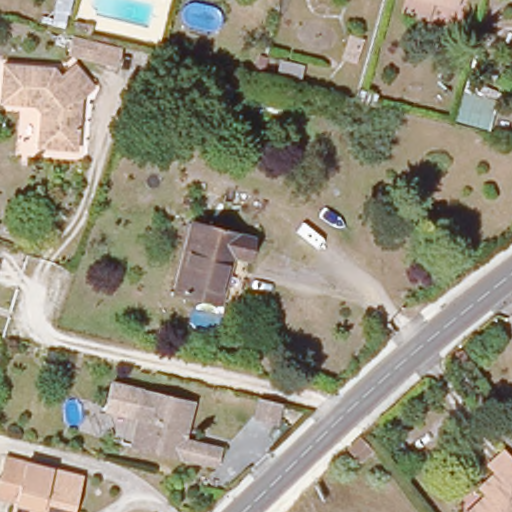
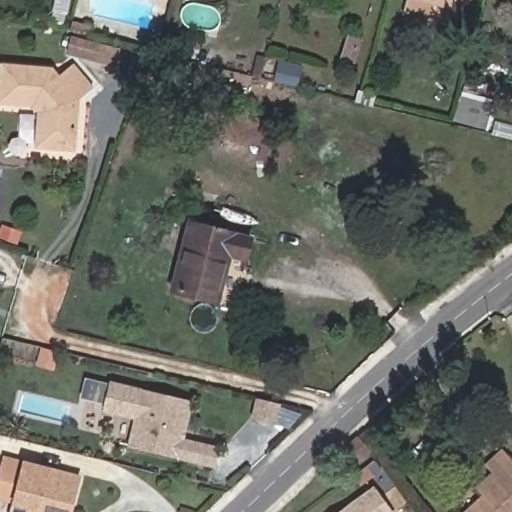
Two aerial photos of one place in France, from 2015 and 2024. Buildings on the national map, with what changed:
unchanged [(408,0),(452,0),(449,14),(408,2),(408,0)]
unchanged [(54,73),(72,62),(88,86),(74,94),(69,148),(30,144),(34,110),(28,101),(0,97),(0,60),(48,66),(54,73)]
unchanged [(219,127),(192,119),(203,78),(228,86),(219,127)]
unchanged [(186,220),(247,234),(242,256),(226,252),(215,299),(170,288),(186,220)]
unchanged [(184,437),(218,446),(214,463),(131,442),(138,415),(105,406),(113,379),(193,400),(184,437)]
unchanged [(261,401),(275,404),(270,424),(250,419),(255,399),(261,401)]
unchanged [(0,493),(0,461),(2,454),(76,474),(67,512),(9,512),(13,497),(0,493)]
unchanged [(502,457),(512,469),(512,512),(471,512),(484,500),(477,494),(483,488),(494,478),(487,470),(502,457)]
new [(392,512),(339,512),(374,487),(392,512)]

